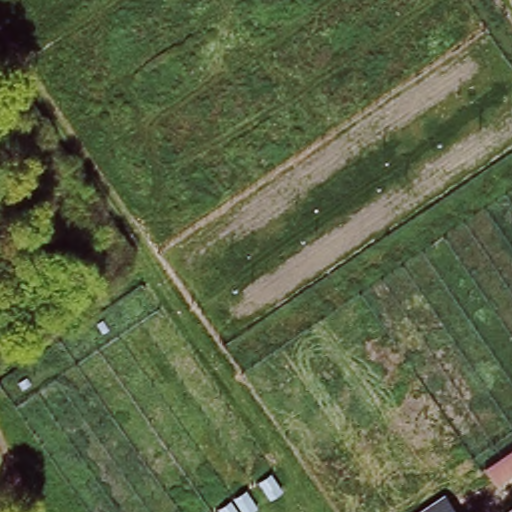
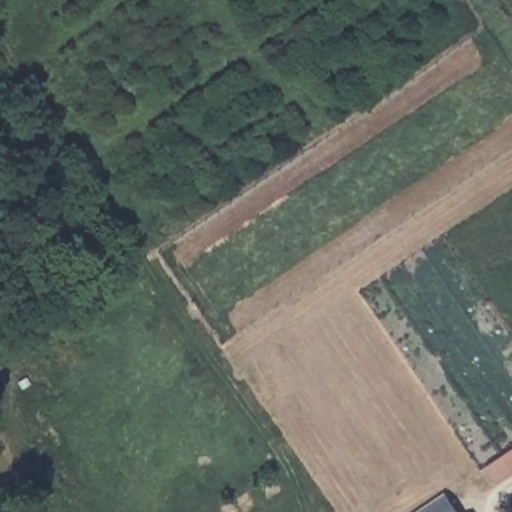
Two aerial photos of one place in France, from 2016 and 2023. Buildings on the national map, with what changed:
unchanged [(256,483),(271,475),(283,494),(269,502),(256,483)]
unchanged [(258,512),(243,512),(236,499),(248,491),(259,511),(258,512)]
unchanged [(441,492),(453,512),(411,512),(441,492)]
unchanged [(232,505),(236,512),(220,512),(232,505)]

